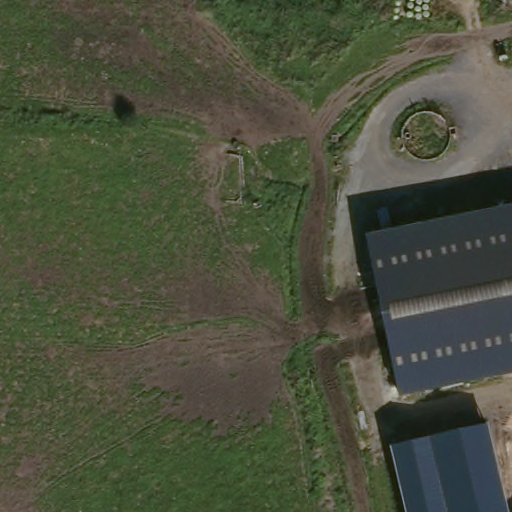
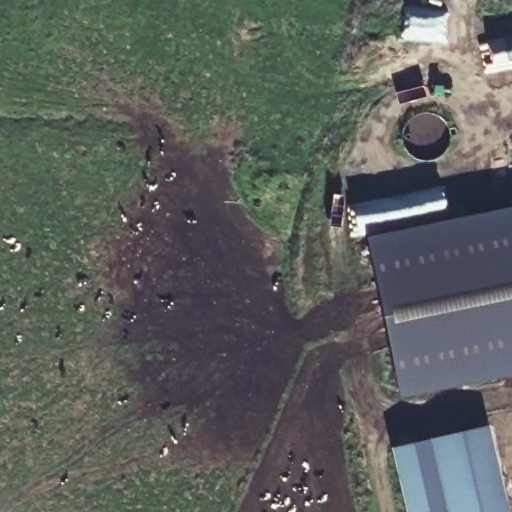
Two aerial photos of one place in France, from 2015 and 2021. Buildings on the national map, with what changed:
unchanged [(398,400),(368,234),(512,204),(512,374),(398,400)]
unchanged [(406,512),(392,449),(488,426),(507,512),(406,512)]

